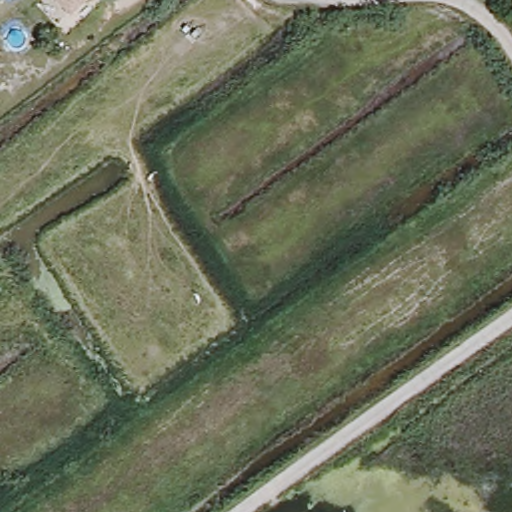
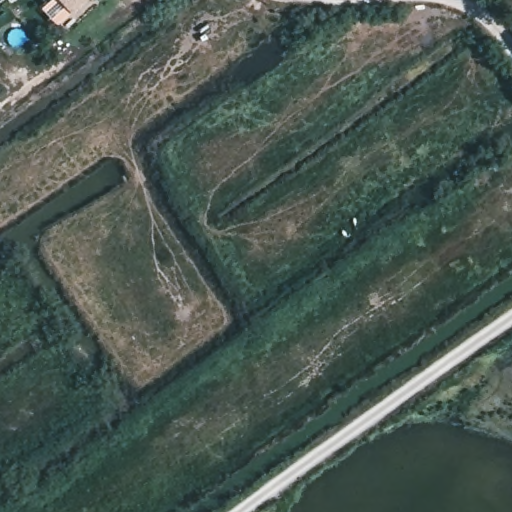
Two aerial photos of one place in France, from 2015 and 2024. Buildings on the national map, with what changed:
unchanged [(52,0),(78,0),(63,13),(52,0)]

